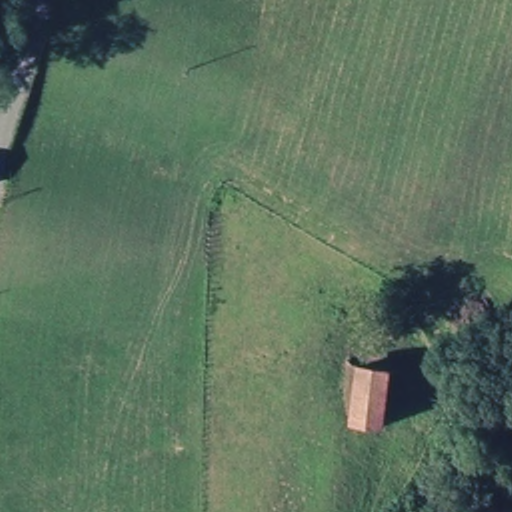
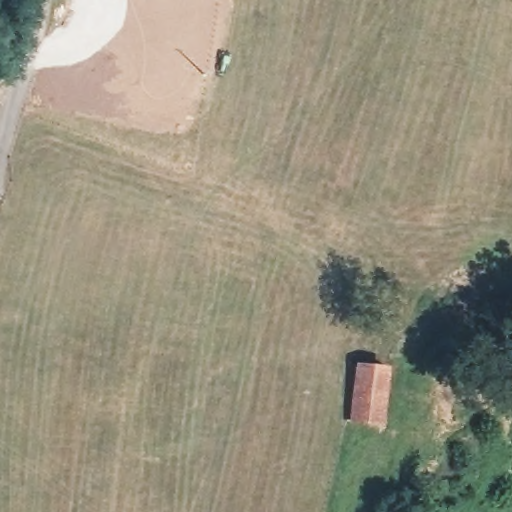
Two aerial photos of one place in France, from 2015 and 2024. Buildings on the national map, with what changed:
unchanged [(386,422),(353,420),(357,367),(390,369),(386,422)]

